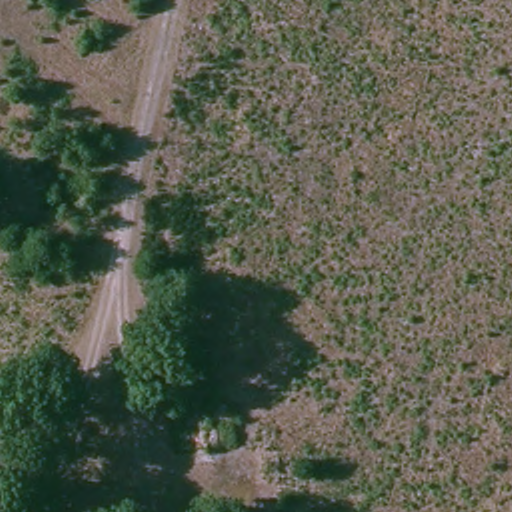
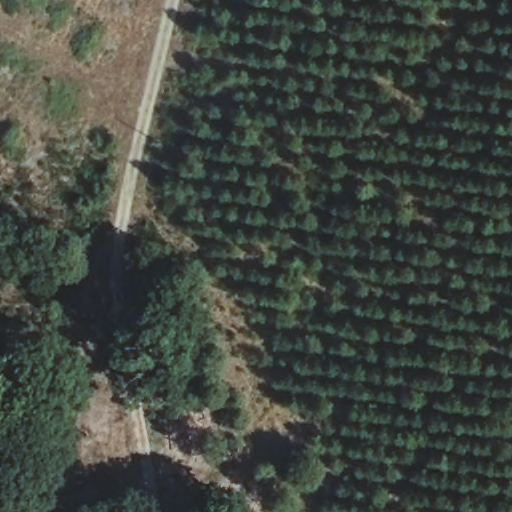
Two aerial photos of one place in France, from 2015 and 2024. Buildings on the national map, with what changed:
unchanged [(22,512),(23,490),(47,491),(47,512),(22,512)]

